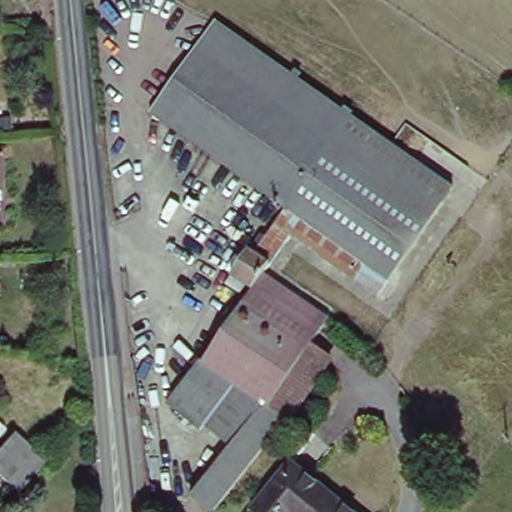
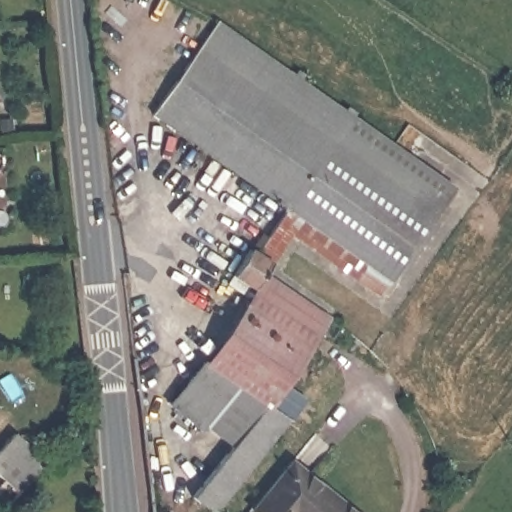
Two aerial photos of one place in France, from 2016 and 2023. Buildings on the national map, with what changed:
unchanged [(280,66),(352,115),(287,209),(152,114),(217,21),(280,66)]
unchanged [(299,365),(287,356),(297,339),(245,304),(255,290),(254,289),(233,275),(251,250),(256,253),(258,250),(253,246),(261,235),(266,238),(287,209),(352,115),(393,145),(455,188),(379,296),(292,236),(272,265),(265,274),(329,319),(312,343),(299,365)]
unchanged [(287,421),(268,444),(214,512),(210,512),(190,497),(230,447),(202,424),(200,428),(170,404),(202,364),(206,364),(245,304),(297,339),(287,356),(299,365),(270,410),(287,421)]
unchanged [(336,359),(292,424),(287,421),(270,410),(299,365),(312,343),(336,359)]
unchanged [(0,479),(0,450),(15,433),(46,461),(17,493),(0,479)]
unchanged [(290,462),(352,512),(252,512),(251,511),(290,462)]

